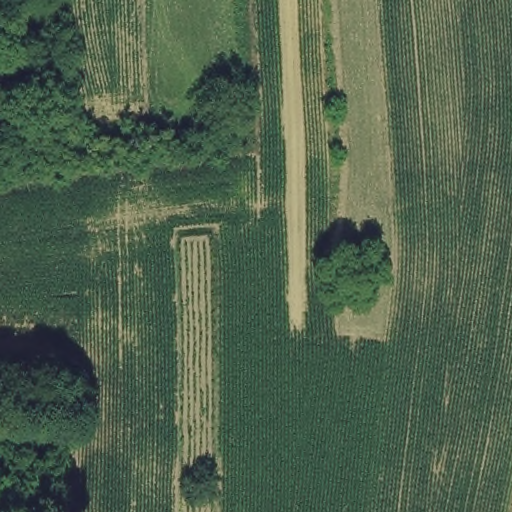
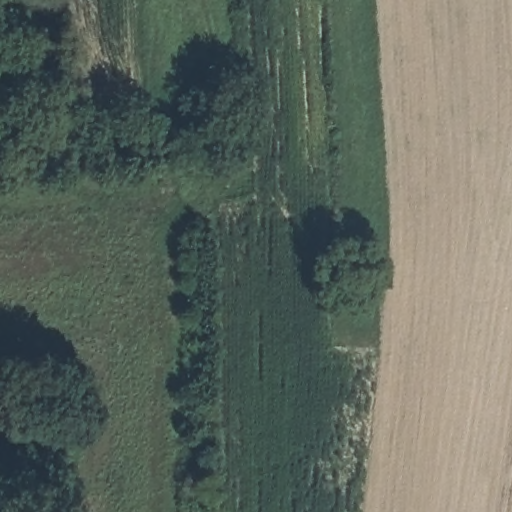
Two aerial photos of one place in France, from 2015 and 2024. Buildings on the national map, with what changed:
unchanged [(166,135),(202,130),(203,152),(168,158),(166,135)]

